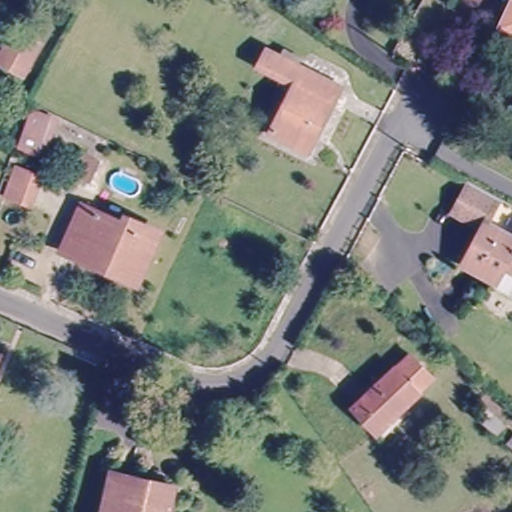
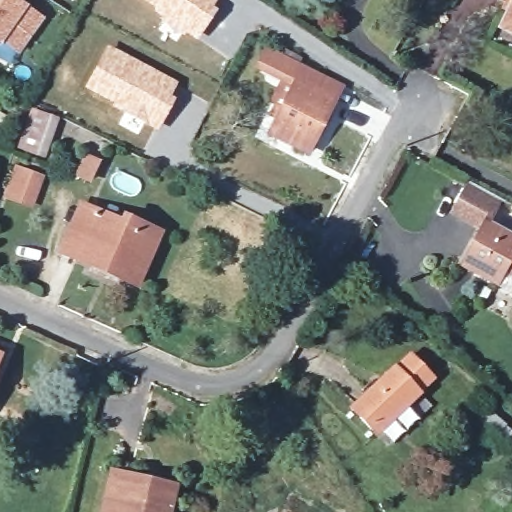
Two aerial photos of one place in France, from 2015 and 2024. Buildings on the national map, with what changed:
new [(20,55),(2,42),(0,47),(0,0),(19,0),(44,17),(20,55)]
new [(214,7),(217,9),(196,41),(162,20),(164,17),(141,0),(218,0),(214,7)]
unchanged [(512,34),(503,30),(512,12),(512,34)]
demolished [(16,28),(36,39),(22,69),(1,57),(16,28)]
new [(108,44),(179,82),(171,96),(175,97),(157,131),(84,87),(108,44)]
unchanged [(289,95),(257,79),(271,51),(345,88),(315,148),(273,127),(289,95)]
unchanged [(60,109),(43,148),(16,139),(31,100),(60,109)]
unchanged [(99,152),(90,173),(72,166),(83,146),(99,152)]
unchanged [(35,162),(21,195),(0,188),(0,179),(10,154),(35,162)]
unchanged [(480,231),(440,209),(456,176),(497,198),(480,231)]
unchanged [(497,288),(460,269),(480,231),(497,198),(512,206),(512,278),(505,274),(497,288)]
unchanged [(130,282),(67,256),(89,206),(152,234),(130,282)]
unchanged [(352,408),(410,355),(433,379),(376,433),(352,408)]
unchanged [(470,403),(485,417),(478,426),(462,411),(470,403)]
unchanged [(512,440),(512,445),(505,452),(490,437),(498,427),(512,440)]
unchanged [(177,498),(173,512),(97,512),(108,477),(177,498)]

